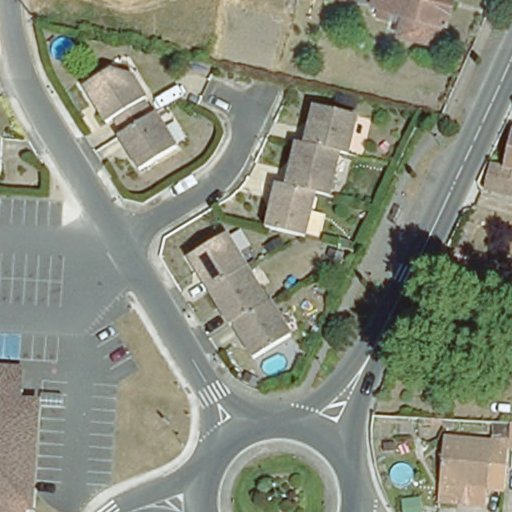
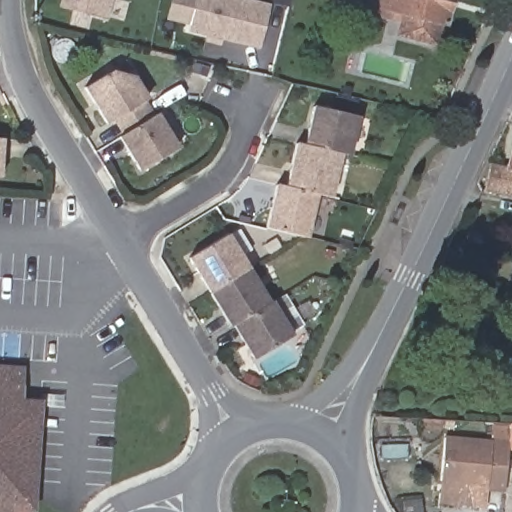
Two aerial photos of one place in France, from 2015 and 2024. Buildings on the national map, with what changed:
new [(107,17),(64,6),(66,0),(112,0),(107,17)]
new [(272,5),(261,47),(190,31),(197,0),(255,0),(272,5)]
unchanged [(437,19),(433,38),(393,27),(398,8),(388,5),(386,11),(374,8),(375,0),(373,0),(447,0),(443,19),(437,19)]
unchanged [(369,45),(371,37),(377,39),(374,46),(369,45)]
unchanged [(114,115),(106,120),(84,85),(107,70),(131,74),(145,96),(141,99),(151,114),(148,116),(124,131),(114,115)]
unchanged [(340,149),(305,140),(314,101),(356,111),(348,151),(340,149)]
unchanged [(139,167),(118,135),(124,131),(148,116),(151,114),(154,112),(174,144),(139,167)]
unchanged [(512,130),(512,168),(503,166),(512,130)]
unchanged [(0,166),(0,136),(2,136),(0,166)]
unchanged [(315,189),(287,182),(298,139),(305,140),(340,149),(329,192),(315,189)]
unchanged [(482,189),(488,162),(503,166),(512,168),(512,195),(482,189)]
unchanged [(300,232),(266,224),(277,180),(287,182),(315,189),(305,233),(300,232)]
unchanged [(209,290),(188,256),(225,232),(246,266),(209,290)]
unchanged [(233,322),(230,324),(209,290),(246,266),(268,301),(233,322)]
unchanged [(268,301),(272,299),(290,333),(254,356),(233,322),(268,301)]
unchanged [(24,390),(0,388),(0,368),(25,370),(24,390)]
unchanged [(37,410),(31,512),(0,512),(0,388),(24,390),(23,408),(37,410)]
unchanged [(409,437),(407,422),(417,421),(419,435),(409,437)]
unchanged [(461,508),(439,507),(444,441),(492,445),(493,426),(511,427),(512,427),(512,454),(509,453),(506,492),(462,490),(461,508)]

